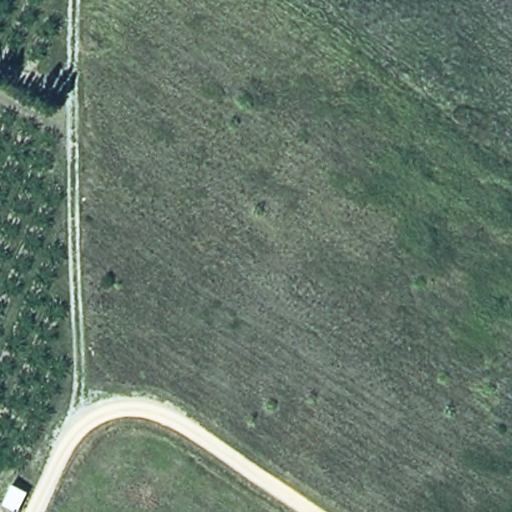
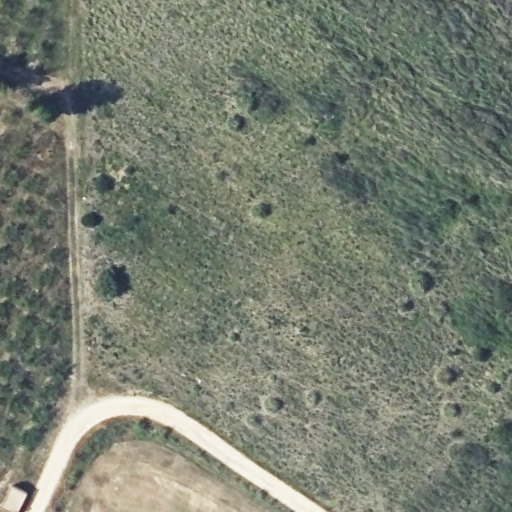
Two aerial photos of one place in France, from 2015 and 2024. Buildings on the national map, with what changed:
unchanged [(12,477),(29,489),(16,510),(2,501),(12,477)]

